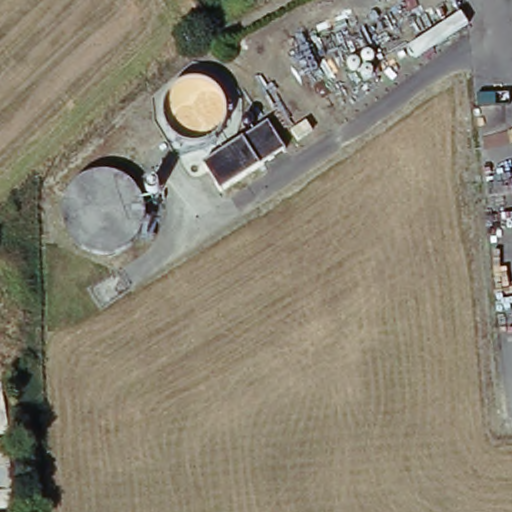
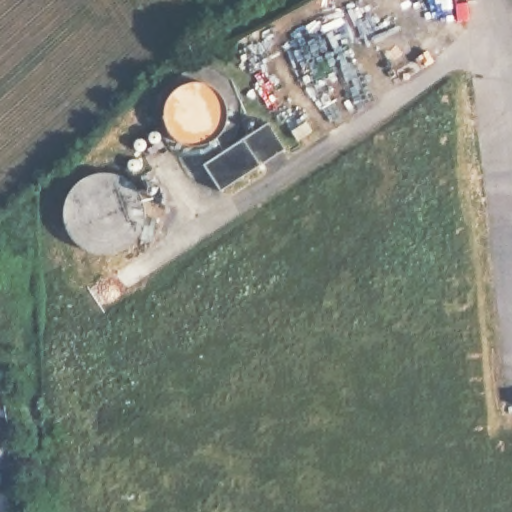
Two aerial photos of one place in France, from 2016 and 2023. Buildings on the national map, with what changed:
unchanged [(307,118),(313,127),(298,137),(292,127),(307,118)]
unchanged [(250,122),(251,122),(252,122),(252,123),(253,123),(254,124),(254,125),(255,125),(255,126),(255,127),(255,128),(255,129),(255,130),(255,131),(254,131),(254,132),(253,132),(253,133),(252,133),(251,134),(250,134),(249,134),(248,134),(247,134),(246,133),(245,133),(245,132),(244,132),(244,131),(244,130),(243,130),(243,129),(243,128),(243,127),(243,126),(243,125),(244,125),(244,124),(245,123),(246,123),(246,122),(247,122),(248,122),(249,122),(250,122)]
unchanged [(269,128),(285,156),(220,197),(202,170),(269,128)]

